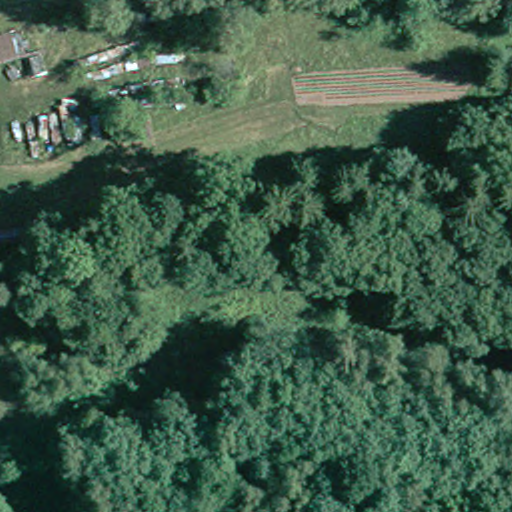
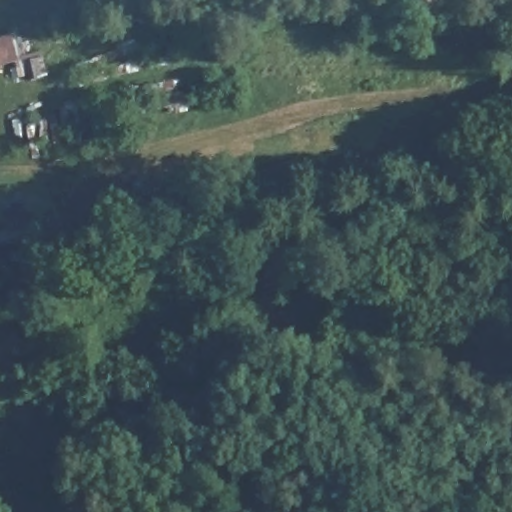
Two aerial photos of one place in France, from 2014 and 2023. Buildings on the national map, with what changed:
unchanged [(0,68),(0,46),(29,38),(35,58),(0,68)]

